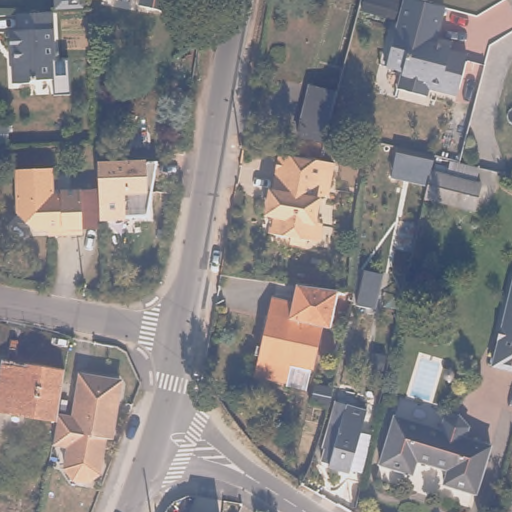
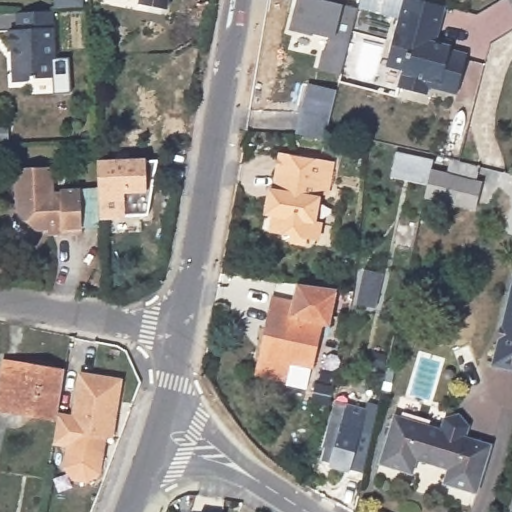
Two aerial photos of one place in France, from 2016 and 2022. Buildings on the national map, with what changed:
unchanged [(86,2),(60,5),(60,0),(86,0),(86,2)]
unchanged [(170,4),(165,4),(162,17),(135,11),(137,0),(171,0),(170,4)]
new [(345,4),(359,6),(342,75),(318,69),(323,50),(328,50),(332,38),(312,33),(290,28),(297,0),(345,0),(345,4)]
unchanged [(449,6),(441,37),(457,41),(455,47),(454,50),(472,55),(462,94),(433,86),(431,95),(403,87),(407,70),(391,66),(402,26),(409,0),(423,0),(438,4),(449,6)]
unchanged [(41,10),(59,9),(61,57),(59,57),(60,76),(37,77),(35,80),(20,81),(19,62),(21,61),(21,49),(16,49),(16,28),(24,27),(22,11),(41,10)]
unchanged [(311,82),(337,89),(337,90),(334,100),(325,137),(297,130),(307,94),(311,82)]
unchanged [(317,237),(307,237),(307,241),(288,240),(290,235),(273,232),(276,218),(272,216),(262,215),(266,191),(270,192),(276,152),(309,160),(320,160),(328,163),(325,194),(317,192),(313,220),(318,221),(317,237)]
unchanged [(163,159),(166,170),(148,172),(148,215),(101,216),(97,161),(163,159)]
unchanged [(39,228),(26,228),(9,210),(9,166),(45,168),(45,193),(52,192),(53,190),(72,190),(90,190),(90,230),(72,230),(72,233),(54,234),(39,235),(39,228)]
unchanged [(432,170),(481,181),(475,208),(427,196),(432,170)]
unchanged [(370,302),(356,299),(364,265),(378,267),(370,302)]
unchanged [(493,364),(511,278),(512,276),(512,368),(493,364)]
unchanged [(333,286),(336,286),(328,323),(320,321),(306,386),(284,381),(285,378),(255,372),(259,357),(260,357),(272,295),(292,300),(296,283),(333,286)]
unchanged [(62,410),(61,414),(1,404),(9,356),(69,366),(62,410)]
unchanged [(61,414),(62,410),(76,412),(83,370),(122,375),(125,380),(116,435),(109,434),(104,470),(92,478),(77,476),(69,465),(72,443),(57,440),(61,414)]
unchanged [(312,385),(332,388),(328,402),(310,398),(312,385)]
unchanged [(333,405),(355,410),(357,403),(367,407),(362,428),(370,430),(361,467),(352,465),(351,470),(330,464),(330,460),(322,457),(325,446),(323,444),(333,405)]
unchanged [(390,418),(437,432),(440,421),(455,417),(465,428),(462,440),(487,448),(472,496),(440,486),(445,472),(412,461),(408,476),(376,466),(390,418)]

